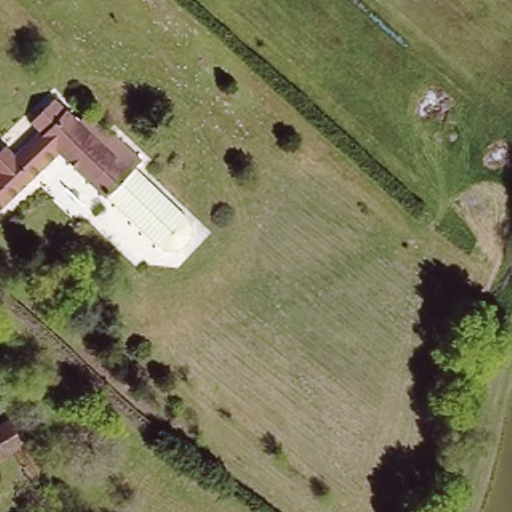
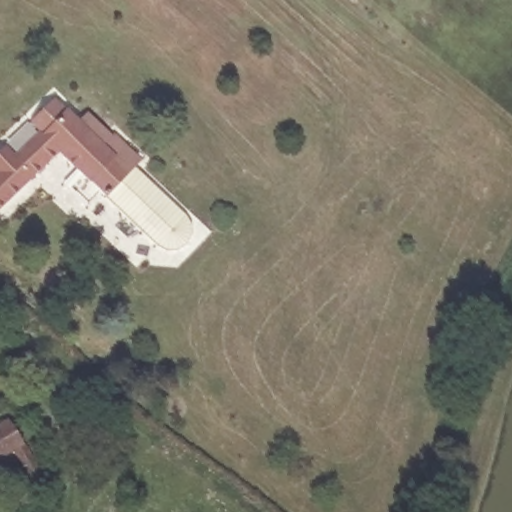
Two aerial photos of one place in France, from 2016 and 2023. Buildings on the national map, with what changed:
unchanged [(0,141),(11,152),(37,127),(27,116),(52,92),(56,96),(100,139),(109,130),(135,157),(177,196),(199,218),(163,254),(141,232),(100,192),(57,148),(0,203),(0,141)]
unchanged [(10,417),(40,471),(30,477),(13,448),(0,456),(0,422),(10,417)]

